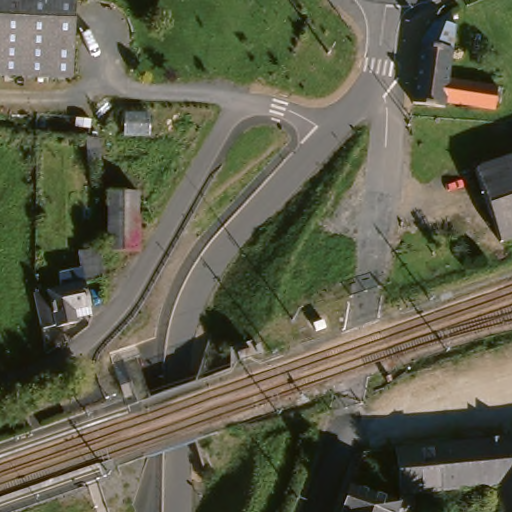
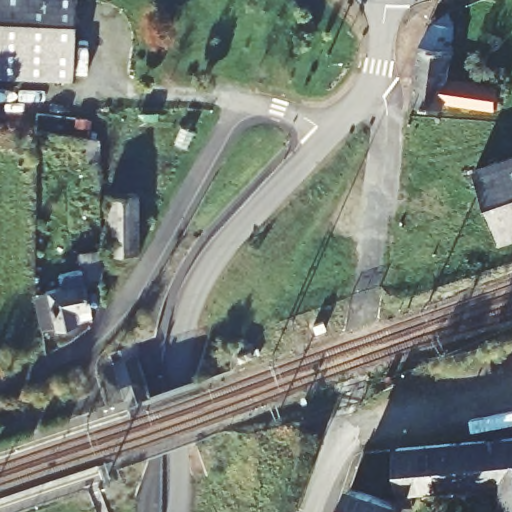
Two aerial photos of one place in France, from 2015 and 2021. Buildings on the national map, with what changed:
unchanged [(0,73),(0,0),(76,0),(72,75),(0,73)]
unchanged [(490,115),(443,112),(442,117),(408,115),(413,59),(427,36),(448,21),(445,89),(490,92),(490,115)]
unchanged [(115,159),(113,159),(107,158),(102,158),(101,139),(101,136),(101,132),(101,129),(115,132),(115,159)]
unchanged [(485,221),(467,179),(485,171),(512,159),(512,237),(495,244),(485,221)]
unchanged [(136,250),(109,247),(103,247),(108,189),(109,190),(139,192),(136,250)]
unchanged [(51,344),(48,332),(47,325),(45,310),(43,293),(42,291),(67,287),(67,273),(88,271),(88,256),(96,255),(109,252),(112,281),(94,282),(93,282),(94,287),(94,294),(95,297),(96,298),(97,307),(82,308),(83,321),(60,325),(59,323),(56,324),(58,342),(51,344)]
unchanged [(335,493),(383,507),(384,497),(383,479),(374,478),(374,477),(374,472),(377,470),(382,469),(381,450),(512,441),(512,512),(486,512),(484,491),(396,497),(402,506),(397,512),(329,512),(335,493)]

